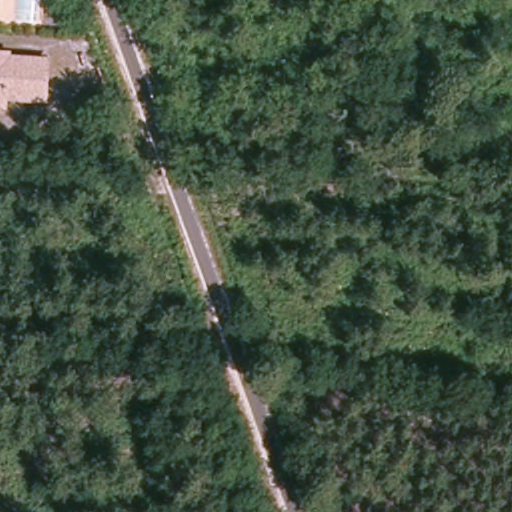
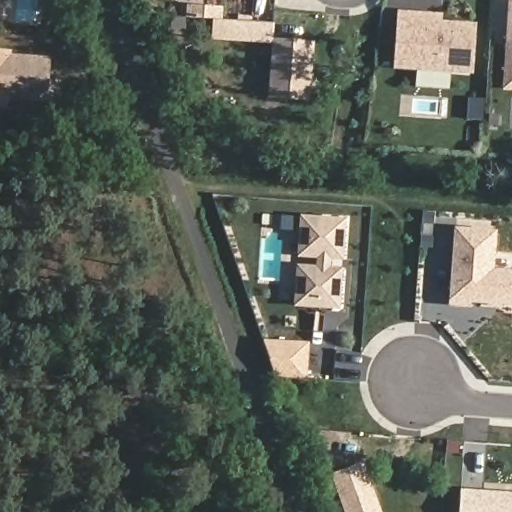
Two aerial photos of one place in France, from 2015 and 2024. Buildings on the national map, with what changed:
new [(424,6),(445,8),(444,22),(478,24),(475,75),(401,69),(405,5),(424,6)]
new [(512,33),(512,88),(508,88),(510,66),(512,33)]
unchanged [(100,71),(86,35),(98,40),(111,70),(100,71)]
new [(276,39),(316,42),(312,100),(271,97),(276,39)]
unchanged [(9,63),(47,62),(46,101),(5,100),(1,109),(0,109),(0,56),(8,56),(9,63)]
new [(301,266),(321,267),(322,257),(302,256),(304,221),(310,217),(349,220),(346,260),(334,259),(333,269),(346,270),(343,308),(304,305),(299,300),(301,266)]
new [(460,230),(499,234),(496,271),(512,273),(512,304),(473,301),(473,306),(454,305),(460,230)]
new [(312,343),(311,379),(279,377),(266,341),(312,343)]
new [(384,512),(351,512),(338,475),(368,465),(384,512)]
new [(512,493),(512,512),(462,512),(464,490),(512,493)]

